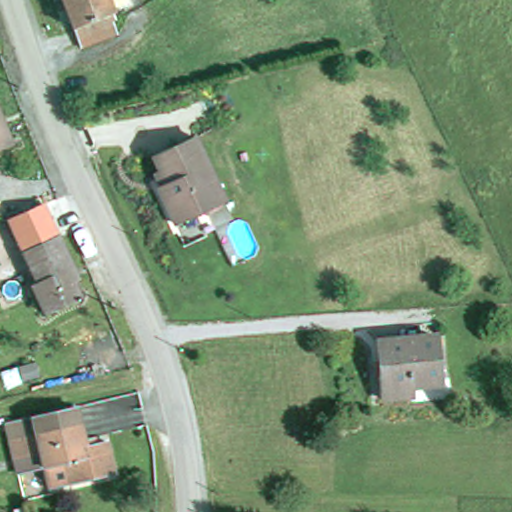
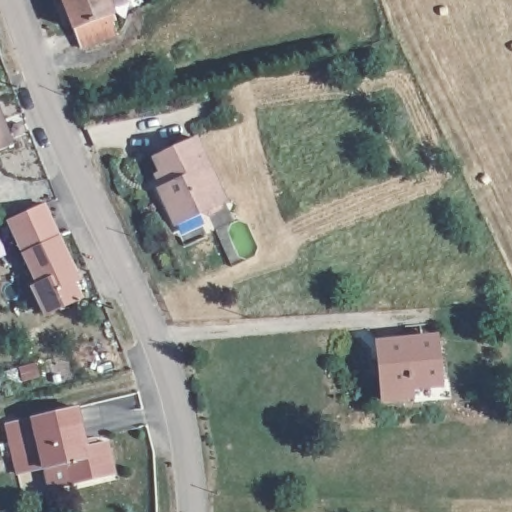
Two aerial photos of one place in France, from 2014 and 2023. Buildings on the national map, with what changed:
unchanged [(74,33),(61,0),(107,0),(114,17),(110,19),(117,37),(80,50),(74,33)]
unchanged [(0,148),(0,129),(7,146),(0,148)]
unchanged [(162,175),(154,158),(194,139),(225,202),(220,212),(208,217),(200,215),(175,227),(159,191),(154,179),(162,175)]
unchanged [(25,254),(7,219),(45,203),(59,238),(25,254)]
unchanged [(80,296),(45,313),(33,287),(37,284),(25,254),(59,238),(74,271),(70,273),(80,296)]
unchanged [(437,337),(441,376),(412,380),(413,395),(380,398),(378,373),(383,373),(380,344),(437,337)]
unchanged [(4,424),(30,417),(76,407),(79,429),(10,443),(4,424)]
unchanged [(15,464),(10,443),(79,429),(82,444),(94,441),(95,448),(105,446),(112,479),(50,492),(46,474),(19,479),(15,464)]

